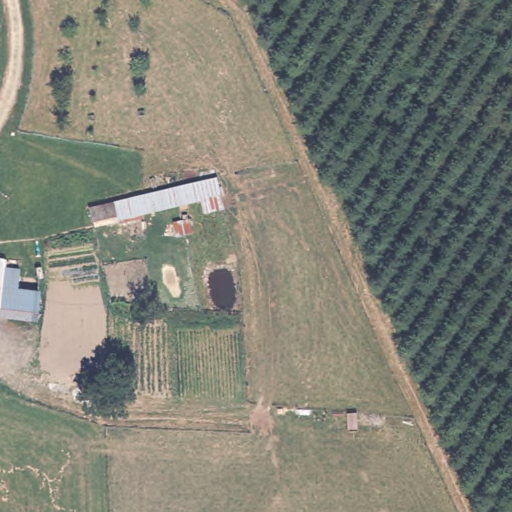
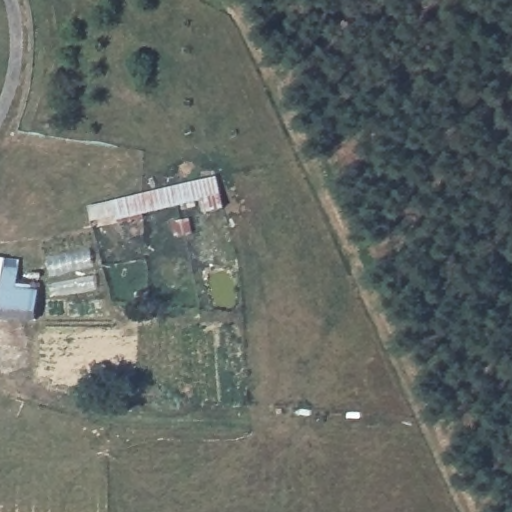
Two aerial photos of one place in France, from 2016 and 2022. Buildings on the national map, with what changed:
unchanged [(147,224),(119,231),(116,221),(93,227),(89,211),(218,176),(227,210),(206,216),(201,201),(172,208),(145,216),(147,224)]
unchanged [(16,269),(15,288),(35,290),(32,321),(0,318),(0,267),(16,269)]

